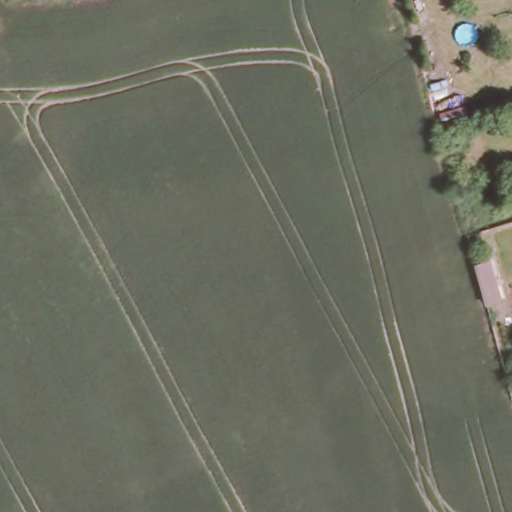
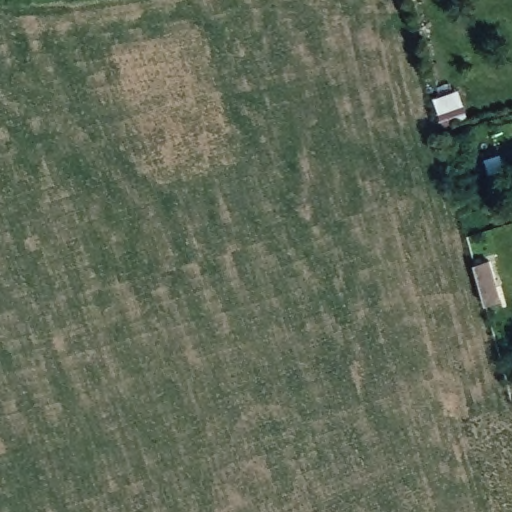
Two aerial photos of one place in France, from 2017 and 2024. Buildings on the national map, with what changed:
unchanged [(477,265),(491,261),(502,299),(487,303),(477,265)]

